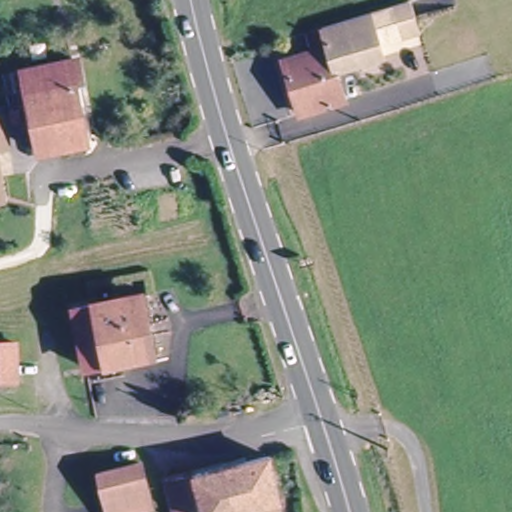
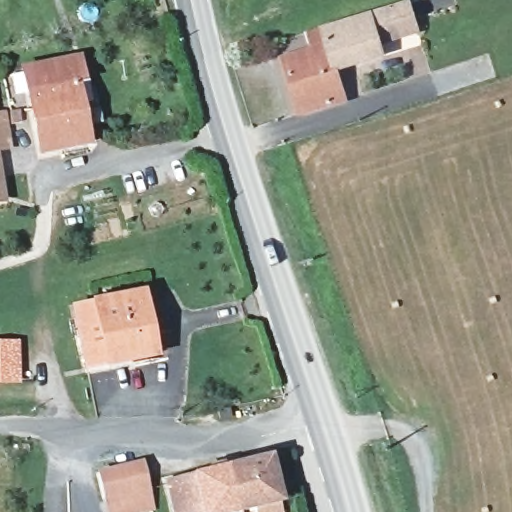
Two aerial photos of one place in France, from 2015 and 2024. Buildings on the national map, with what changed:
unchanged [(404,0),(407,0),(418,29),(403,34),(392,4),(404,0)]
unchanged [(385,55),(372,60),(341,73),(352,102),(307,119),(287,66),(316,55),(308,36),(356,19),(369,14),(385,55)]
unchanged [(79,80),(72,81),(85,144),(41,153),(24,69),(75,60),(79,80)]
unchanged [(2,111),(9,145),(0,146),(0,112),(2,111)]
unchanged [(1,200),(0,200),(0,193),(1,200)]
unchanged [(151,353),(86,366),(74,305),(139,294),(151,353)]
unchanged [(11,379),(0,379),(0,340),(11,340),(11,379)]
unchanged [(252,509),(243,512),(228,512),(215,469),(257,456),(273,503),(276,512),(253,512),(252,509)]
unchanged [(127,512),(109,512),(104,494),(97,474),(134,464),(139,484),(145,507),(127,512)]
unchanged [(215,469),(228,512),(171,512),(164,485),(215,469)]

